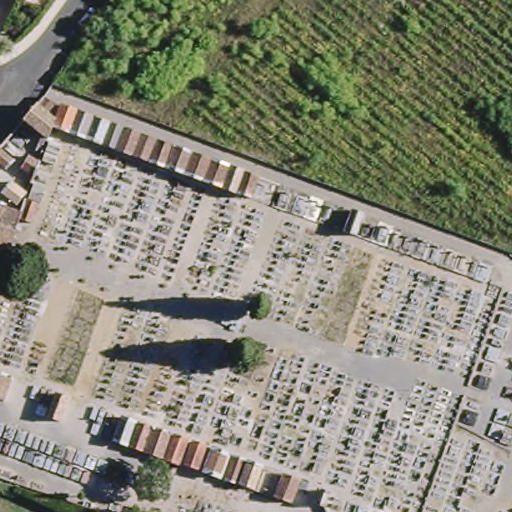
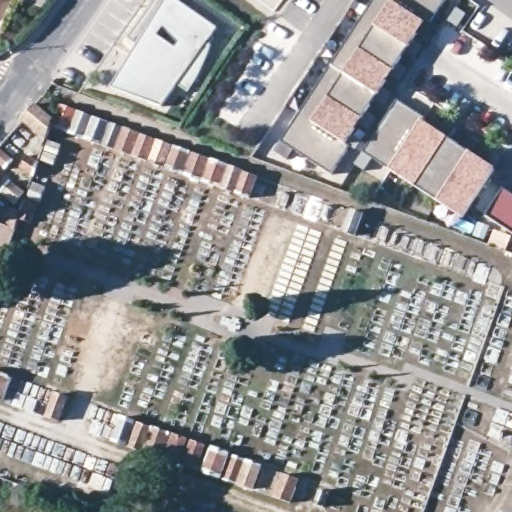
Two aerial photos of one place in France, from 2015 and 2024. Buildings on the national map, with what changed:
unchanged [(28,0),(25,9),(0,2),(0,0),(28,0)]
unchanged [(37,0),(37,1),(35,0),(37,0)]
new [(207,42),(210,45),(207,59),(200,72),(189,91),(178,84),(162,106),(112,89),(138,45),(127,39),(155,0),(163,0),(166,1),(166,0),(174,0),(217,28),(207,42)]
new [(423,46),(416,59),(406,52),(398,65),(408,70),(399,84),(390,77),(383,89),(392,94),(383,107),(373,101),(367,114),(380,120),(372,134),(359,126),(353,139),(360,142),(355,151),(348,148),(331,174),(293,150),(287,160),(273,151),(373,0),(443,0),(414,41),(423,46)]
new [(470,137),(480,144),(474,152),(488,161),(494,152),(504,159),(498,168),(463,219),(373,159),(366,172),(356,165),(398,102),(440,131),(447,120),(458,127),(452,139),(464,146),(470,137)]
new [(485,216),(503,190),(512,195),(512,234),(485,216)]

